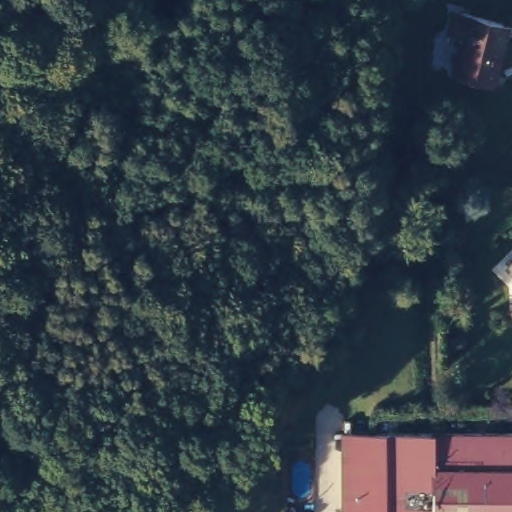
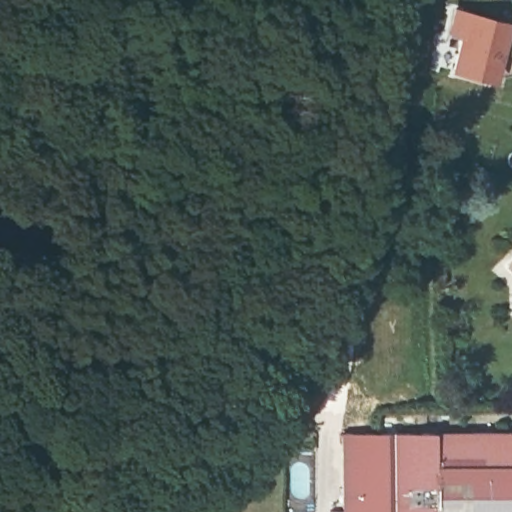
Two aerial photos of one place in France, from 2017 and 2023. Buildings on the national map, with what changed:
unchanged [(490,64),(454,54),(460,32),(441,28),(449,0),(460,0),(505,11),(490,64)]
unchanged [(511,261),(512,260),(512,261),(511,261)]
unchanged [(424,427),(425,512),(339,512),(339,427),(424,427)]
unchanged [(427,445),(428,431),(512,429),(512,512),(426,512),(427,445)]

